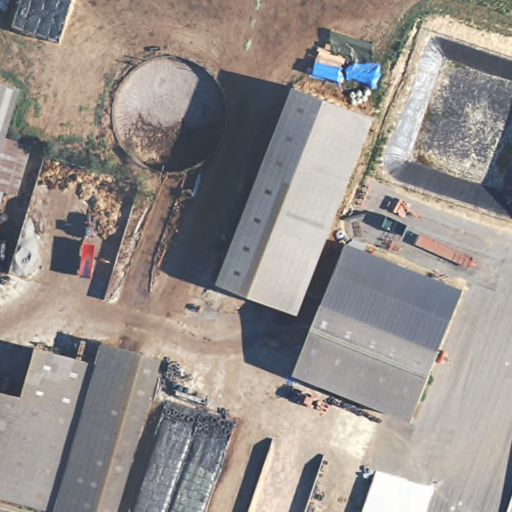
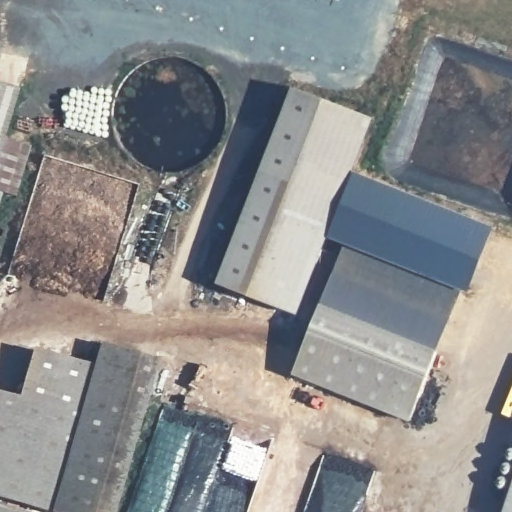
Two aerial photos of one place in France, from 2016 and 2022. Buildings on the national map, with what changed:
unchanged [(0,135),(0,86),(14,90),(0,135)]
unchanged [(261,174),(291,86),(375,120),(340,206),(261,174)]
new [(345,242),(328,235),(340,206),(355,170),(496,228),(470,294),(460,290),(345,242)]
unchanged [(340,206),(296,316),(217,284),(261,174),(340,206)]
unchanged [(332,279),(345,242),(460,290),(446,324),(332,279)]
unchanged [(406,424),(291,375),(332,279),(446,324),(406,424)]
unchanged [(35,351),(92,368),(99,344),(157,360),(114,512),(44,512),(0,499),(0,396),(22,402),(35,351)]
unchanged [(497,487),(508,447),(512,449),(512,512),(505,512),(512,493),(497,487)]

